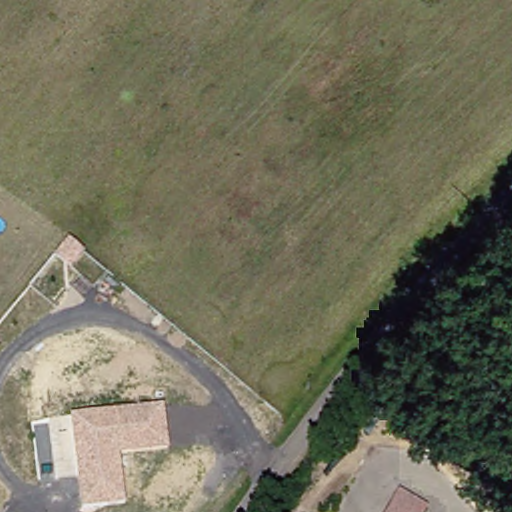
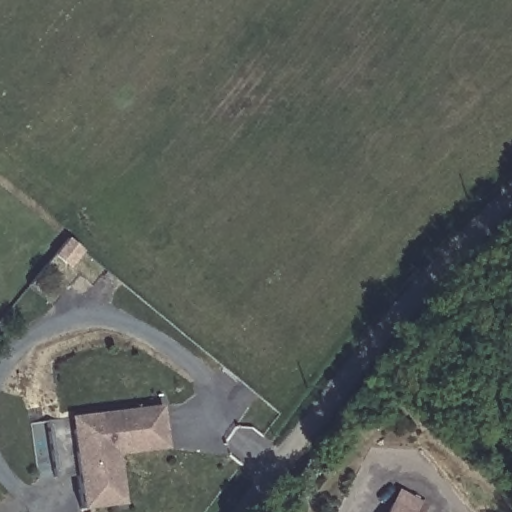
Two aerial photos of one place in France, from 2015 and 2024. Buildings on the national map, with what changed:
unchanged [(162,406),(169,451),(118,458),(124,503),(81,509),(78,475),(53,479),(45,419),(162,406)]
unchanged [(416,512),(389,512),(396,501),(416,512)]

